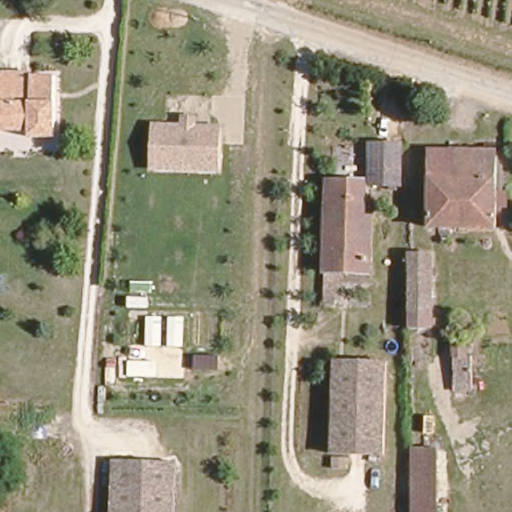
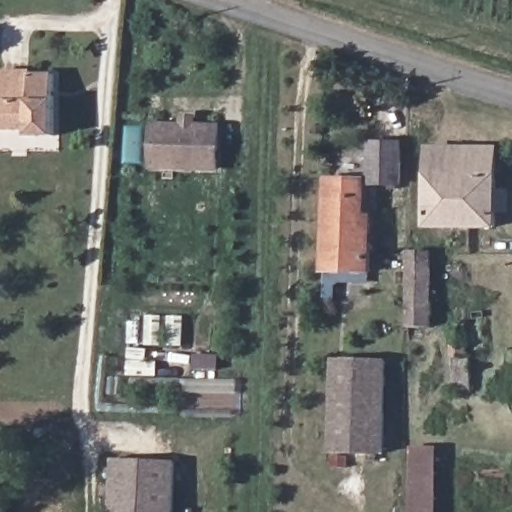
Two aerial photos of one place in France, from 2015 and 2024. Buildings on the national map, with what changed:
unchanged [(0,128),(0,80),(1,80),(1,76),(32,76),(32,80),(56,80),(56,141),(31,141),(31,128),(0,128)]
unchanged [(183,117),(194,117),(193,126),(202,127),(219,127),(217,168),(199,168),(151,166),(152,125),(183,126),(183,117)]
unchanged [(400,138),(398,177),(367,175),(369,137),(400,138)]
unchanged [(431,150),(495,151),(492,230),(429,228),(431,150)]
unchanged [(361,177),(360,220),(366,220),(364,267),(320,264),(323,175),(361,177)]
unchanged [(410,323),(410,249),(430,250),(430,324),(410,323)]
unchanged [(455,386),(457,335),(464,335),(463,365),(472,366),(472,386),(458,386),(455,386)]
unchanged [(330,452),(332,360),(385,361),(381,453),(330,452)]
unchanged [(438,449),(438,512),(411,512),(410,449),(438,449)]
unchanged [(176,465),(175,512),(114,512),(115,462),(176,465)]

